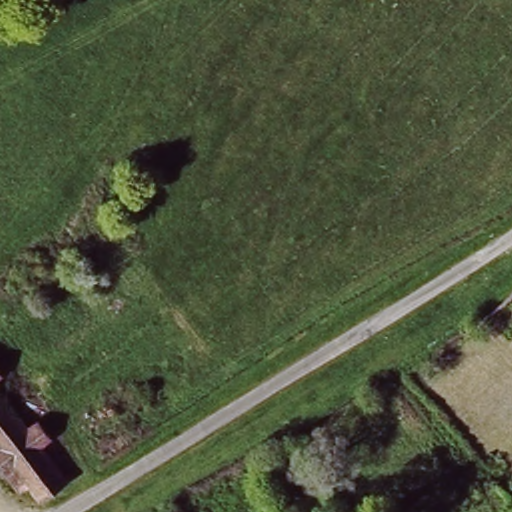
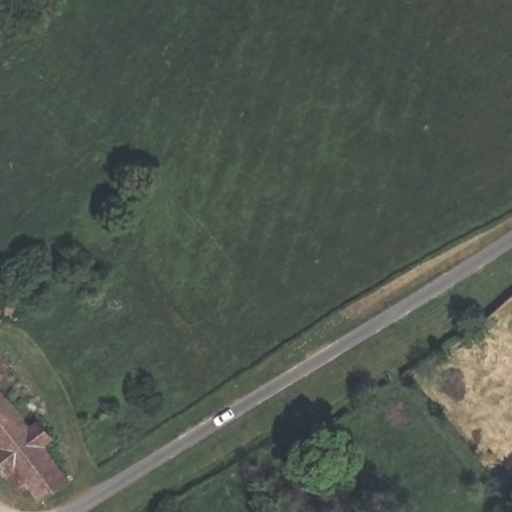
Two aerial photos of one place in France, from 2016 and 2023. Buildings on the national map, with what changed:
unchanged [(30,491),(20,497),(0,467),(0,365),(9,377),(0,382),(32,427),(40,422),(50,436),(42,442),(69,480),(37,501),(30,491)]

